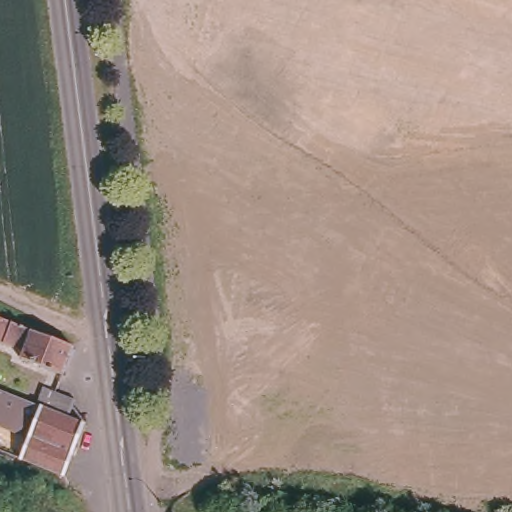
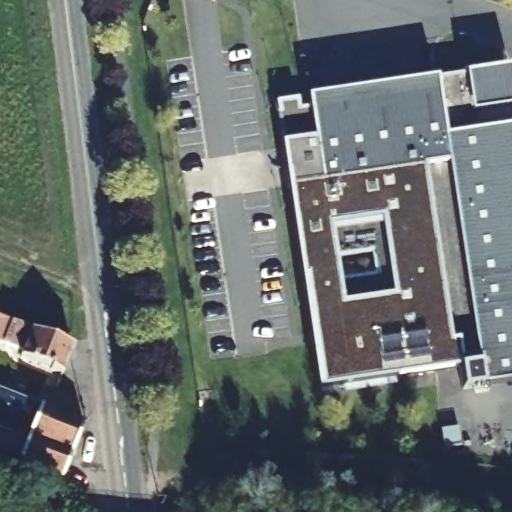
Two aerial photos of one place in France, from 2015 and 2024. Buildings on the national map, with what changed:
new [(512,69),(512,379),(467,387),(461,364),(315,387),(267,92),(511,62),(512,69)]
unchanged [(20,349),(0,340),(0,313),(67,342),(72,375),(17,353),(20,349)]
unchanged [(33,429),(0,416),(0,386),(83,418),(85,431),(67,473),(23,455),(33,429)]

